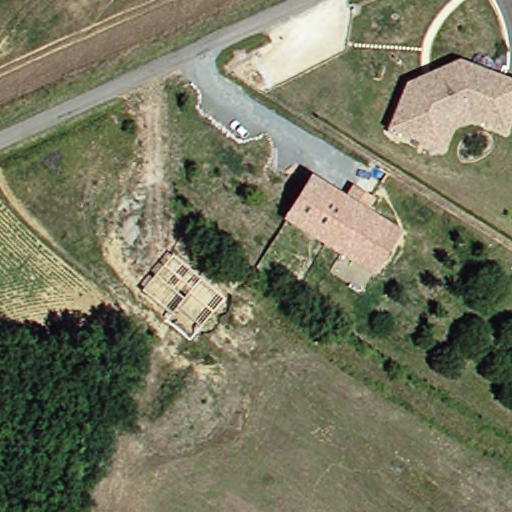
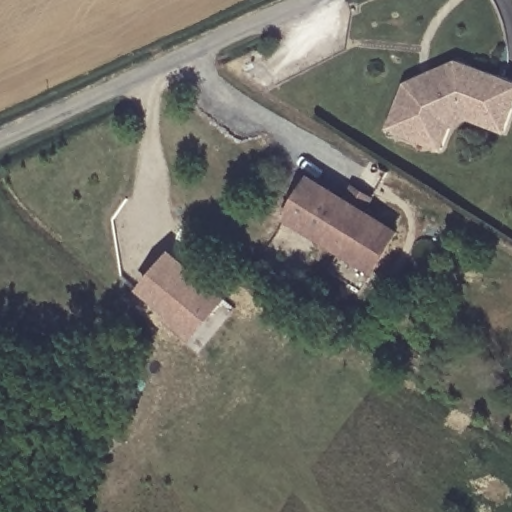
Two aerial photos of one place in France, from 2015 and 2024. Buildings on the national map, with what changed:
unchanged [(425,144),(386,128),(404,82),(455,59),(501,74),(512,78),(512,111),(505,129),(459,112),(448,127),(440,150),(425,144)]
unchanged [(373,273),(356,265),(285,221),(306,182),(377,224),(396,234),(373,273)]
new [(174,248),(230,297),(191,342),(161,319),(165,315),(137,291),(174,248)]

